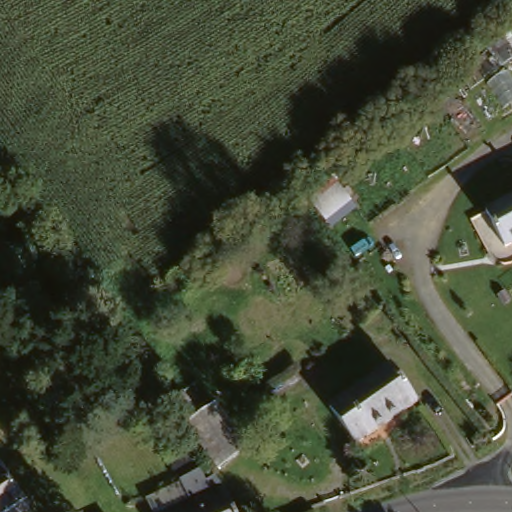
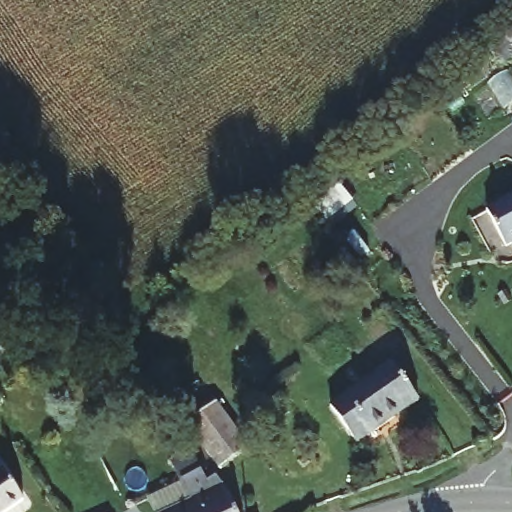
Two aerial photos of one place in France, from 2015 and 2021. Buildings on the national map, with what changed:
unchanged [(494,252),(483,231),(476,216),(512,198),(512,243),(494,252)]
unchanged [(408,401),(347,446),(321,408),(382,365),(408,401)]
unchanged [(242,450),(212,469),(181,422),(212,402),(242,450)]
unchanged [(201,481),(210,475),(227,497),(223,500),(212,487),(188,502),(162,464),(179,451),(201,481)]
unchanged [(0,512),(0,487),(12,506),(0,512)]
unchanged [(188,502),(212,487),(223,500),(227,497),(239,512),(171,512),(182,506),(188,502)]

